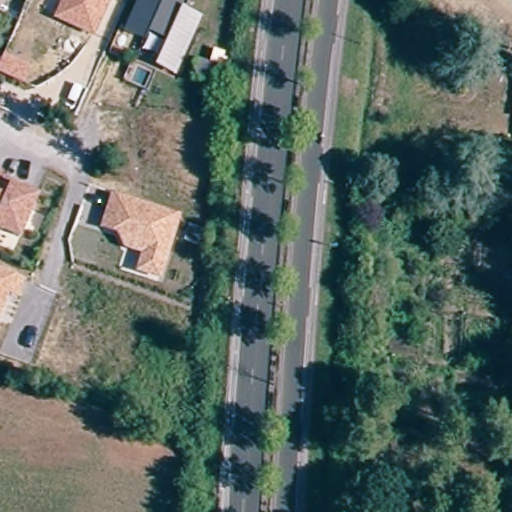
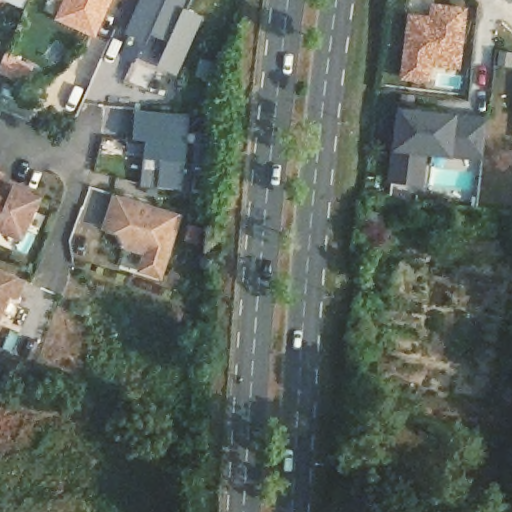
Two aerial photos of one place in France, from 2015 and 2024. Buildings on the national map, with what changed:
unchanged [(14,0),(28,0),(26,5),(14,0)]
unchanged [(109,0),(97,28),(62,13),(46,7),(49,0),(109,0)]
unchanged [(205,14),(181,69),(164,61),(175,38),(154,29),(150,36),(132,29),(145,0),(194,0),(191,8),(205,14)]
new [(407,15),(428,18),(429,5),(462,8),(455,65),(427,62),(425,79),(400,76),(407,15)]
unchanged [(33,64),(27,79),(2,69),(8,53),(33,64)]
new [(141,106),(193,110),(188,183),(168,182),(167,155),(149,155),(149,137),(139,136),(141,106)]
new [(397,109),(466,116),(483,118),(482,131),(480,155),(421,149),(419,166),(417,182),(390,179),(391,163),(397,109)]
unchanged [(1,179),(16,185),(14,188),(37,198),(19,238),(0,230),(0,174),(2,175),(1,179)]
unchanged [(185,209),(167,272),(147,266),(152,248),(132,242),(126,228),(116,225),(112,224),(117,206),(121,190),(185,209)]
unchanged [(19,299),(11,296),(0,323),(0,276),(25,285),(19,299)]

